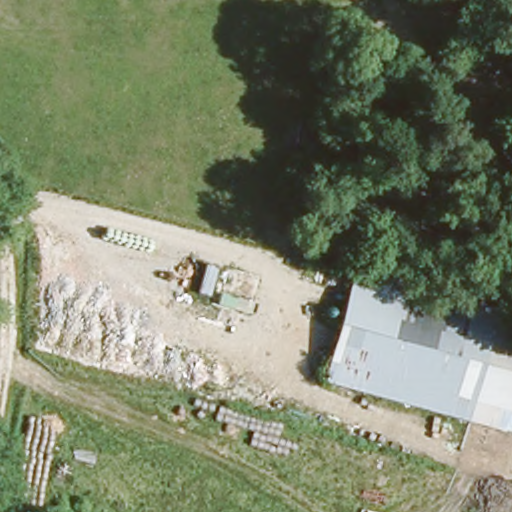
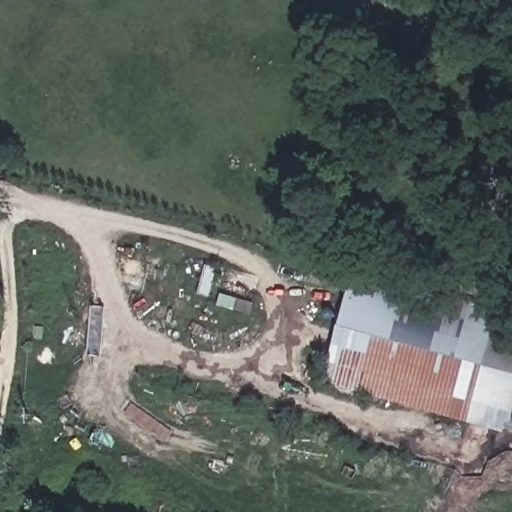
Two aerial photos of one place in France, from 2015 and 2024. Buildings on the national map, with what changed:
unchanged [(512,405),(506,431),(318,382),(324,343),(331,343),(351,265),(512,309),(512,405)]

